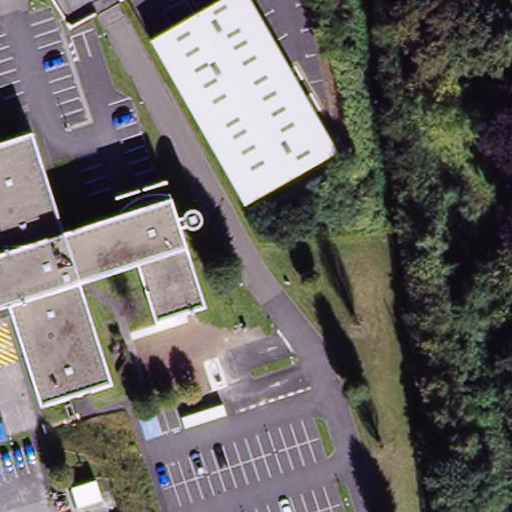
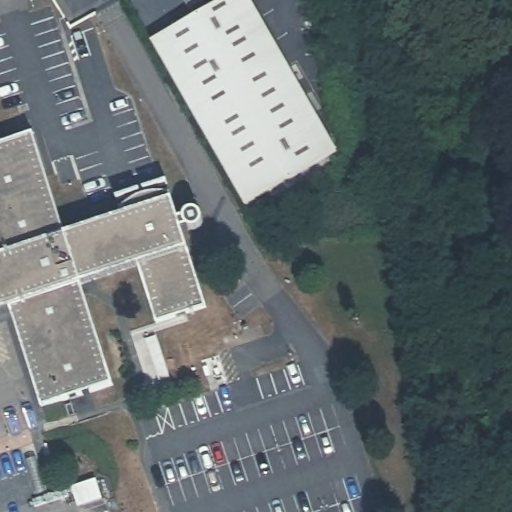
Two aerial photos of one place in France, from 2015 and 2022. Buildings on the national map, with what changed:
unchanged [(153,43),(228,0),(250,0),(337,152),(339,156),(244,210),(224,173),(157,49),(153,43)]
unchanged [(415,97),(421,124),(408,127),(403,100),(415,97)]
unchanged [(37,137),(65,237),(124,220),(122,212),(129,208),(137,202),(146,198),(156,196),(165,195),(173,196),(183,228),(191,226),(193,221),(199,219),(205,218),(209,219),(215,224),(216,229),(217,234),(216,238),(212,242),(206,244),(200,245),(196,242),(188,244),(210,313),(157,330),(139,270),(81,287),(111,390),(37,414),(12,325),(0,327),(0,148),(37,137)]
unchanged [(442,160),(487,152),(503,246),(463,252),(458,229),(453,230),(442,160)]

